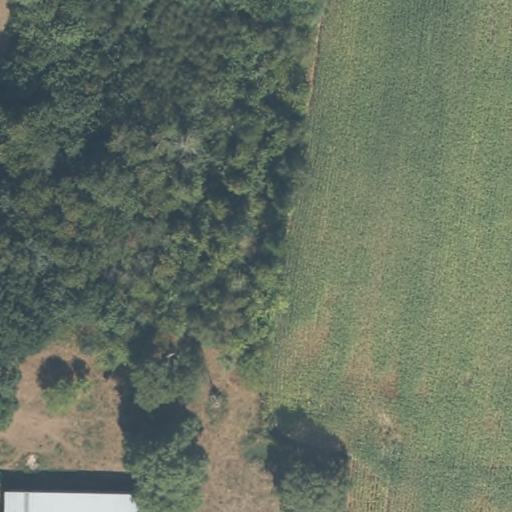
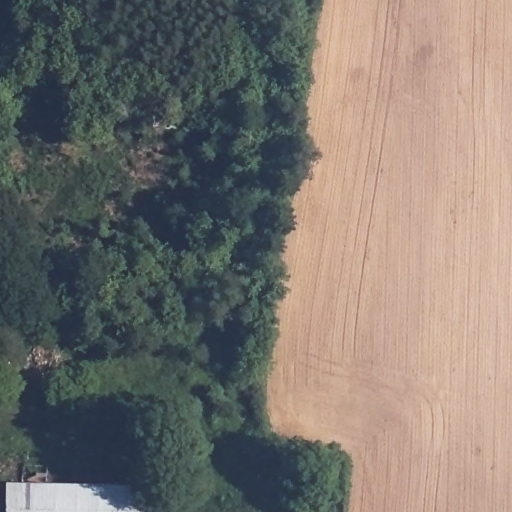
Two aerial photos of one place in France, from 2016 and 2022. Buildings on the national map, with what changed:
unchanged [(61,496),(125,499),(124,512),(6,512),(8,495),(61,496)]
unchanged [(142,499),(142,512),(124,512),(125,499),(142,499)]

